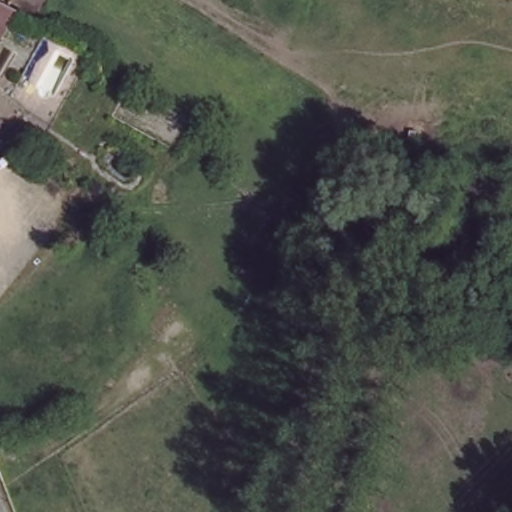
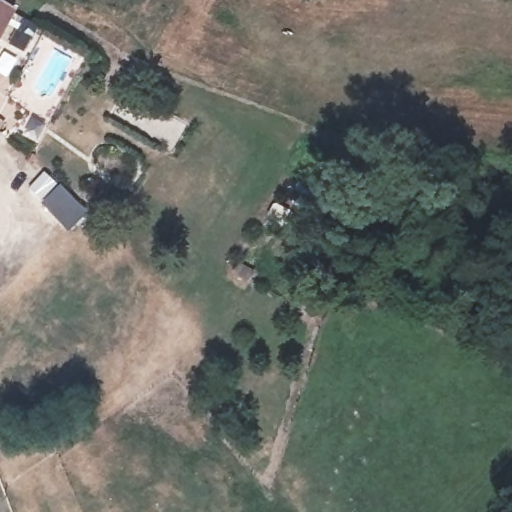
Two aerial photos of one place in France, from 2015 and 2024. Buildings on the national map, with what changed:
unchanged [(0,21),(0,2),(7,6),(0,21)]
new [(45,172),(87,213),(70,231),(27,189),(45,172)]

